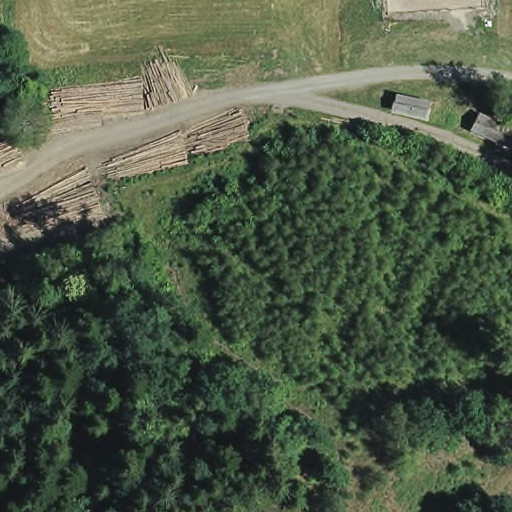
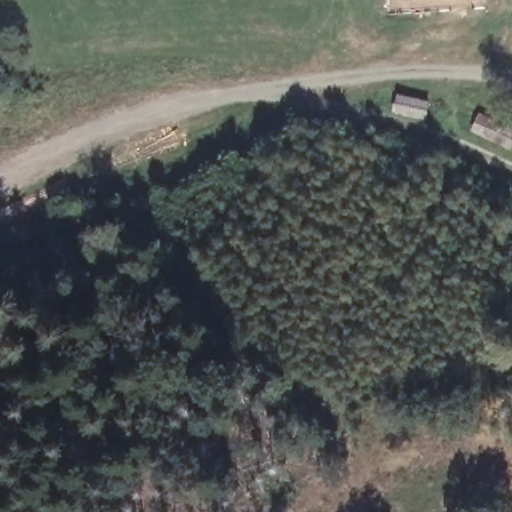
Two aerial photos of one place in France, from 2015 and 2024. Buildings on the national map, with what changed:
unchanged [(430,103),(426,118),(394,111),(397,96),(430,103)]
unchanged [(480,116),(512,133),(512,146),(506,155),(471,136),(480,116)]

